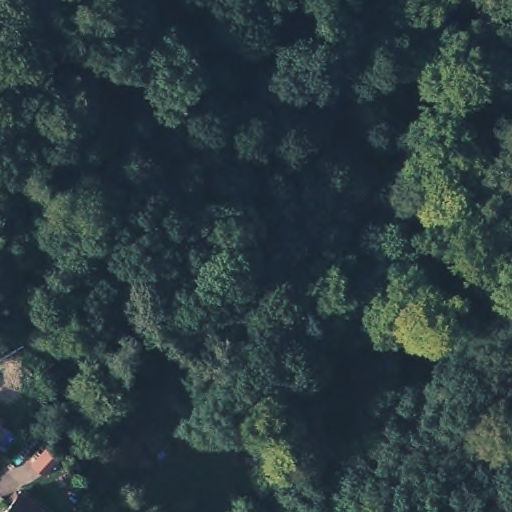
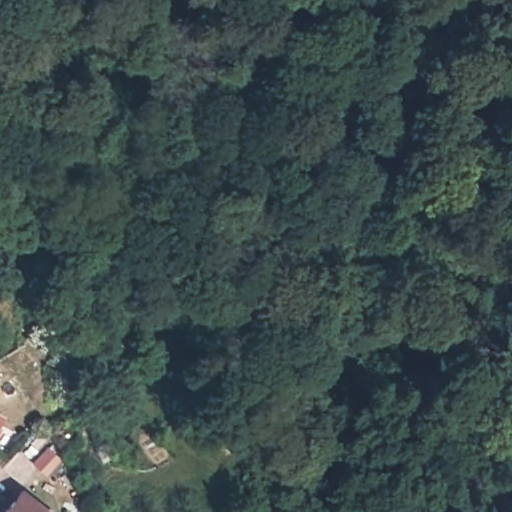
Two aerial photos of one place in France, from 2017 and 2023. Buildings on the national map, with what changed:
unchanged [(0,415),(0,412),(1,413),(0,415)]
unchanged [(0,512),(0,510),(19,485),(53,512),(0,512)]

